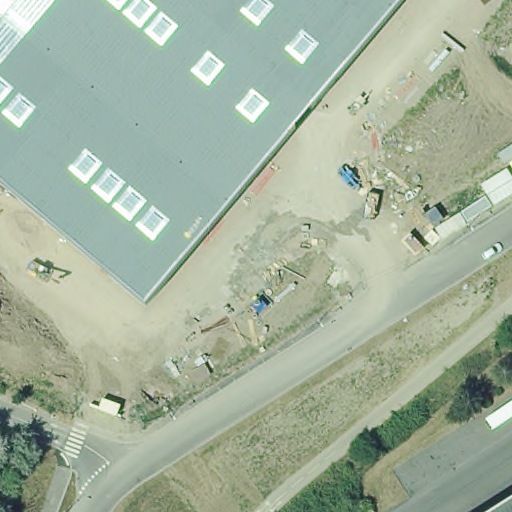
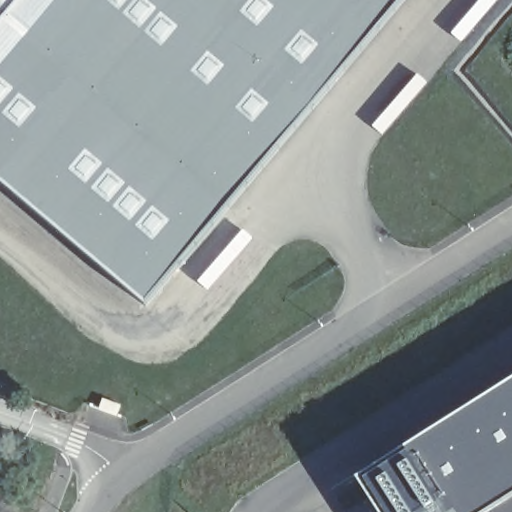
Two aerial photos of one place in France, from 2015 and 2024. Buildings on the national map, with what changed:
unchanged [(0,183),(0,0),(402,0),(145,304),(0,183)]
new [(492,512),(377,512),(357,481),(512,383),(512,499),(492,512)]
unchanged [(512,499),(512,512),(492,512),(512,499)]

